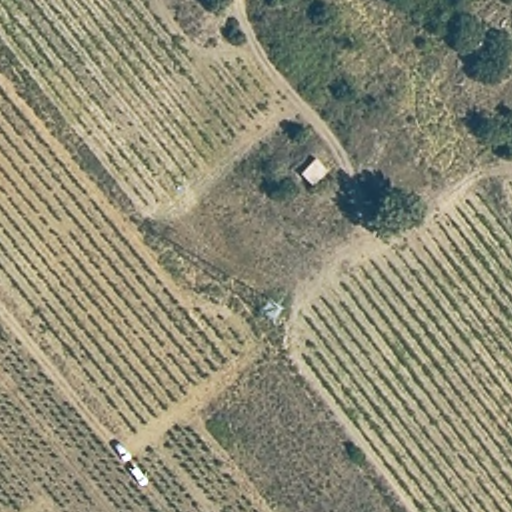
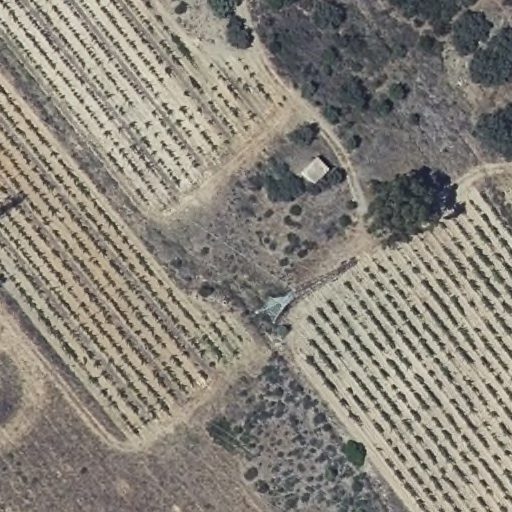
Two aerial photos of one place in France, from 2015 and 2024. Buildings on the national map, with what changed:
unchanged [(325,172),(312,188),(298,172),(314,155),(325,172)]

